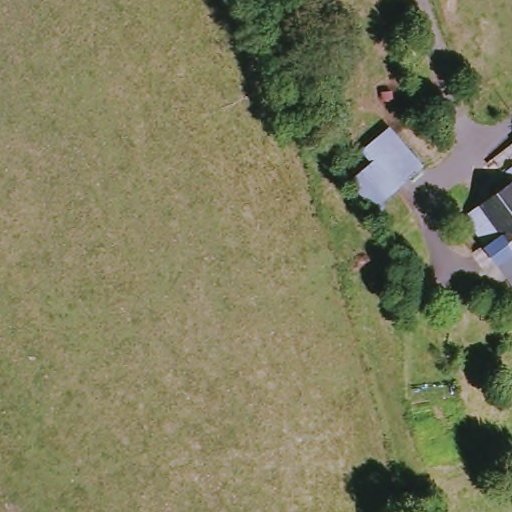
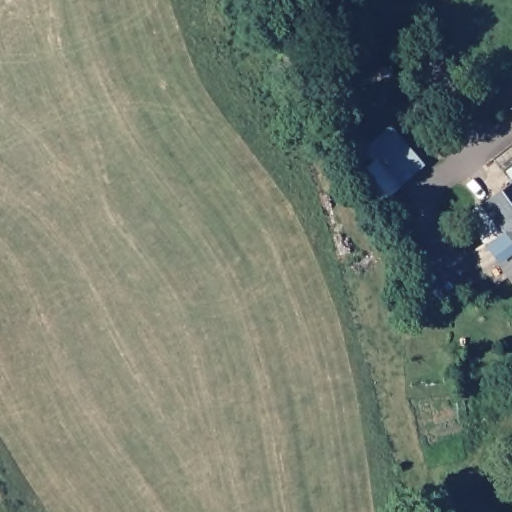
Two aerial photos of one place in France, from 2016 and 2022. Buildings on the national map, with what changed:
unchanged [(381,156),(375,148),(402,128),(433,167),(408,189),(381,156)]
unchanged [(385,210),(360,176),(381,156),(408,189),(385,210)]
unchanged [(512,173),(512,179),(510,175),(512,173)]
unchanged [(471,238),(462,225),(512,189),(512,294),(503,300),(463,245),(471,238)]

